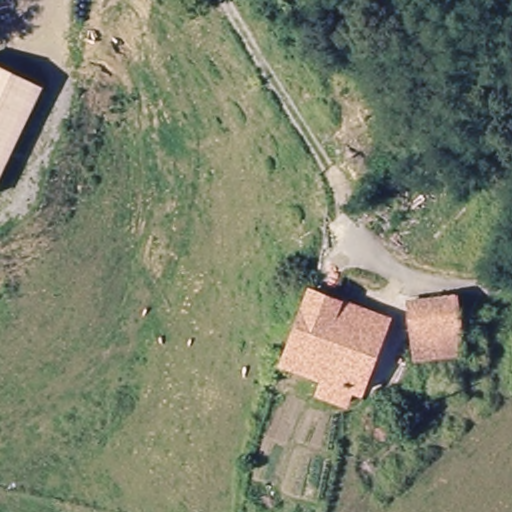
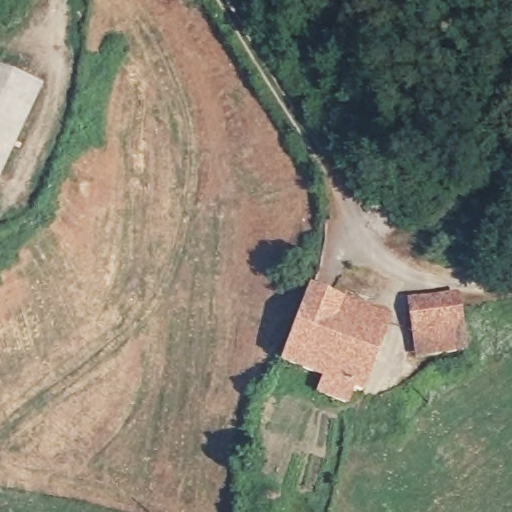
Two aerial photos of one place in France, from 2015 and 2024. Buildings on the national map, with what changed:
unchanged [(42,88),(0,181),(0,69),(42,88)]
unchanged [(360,392),(283,359),(311,287),(390,320),(360,392)]
unchanged [(406,302),(456,294),(467,366),(420,369),(406,302)]
unchanged [(400,425),(394,442),(364,431),(370,414),(400,425)]

